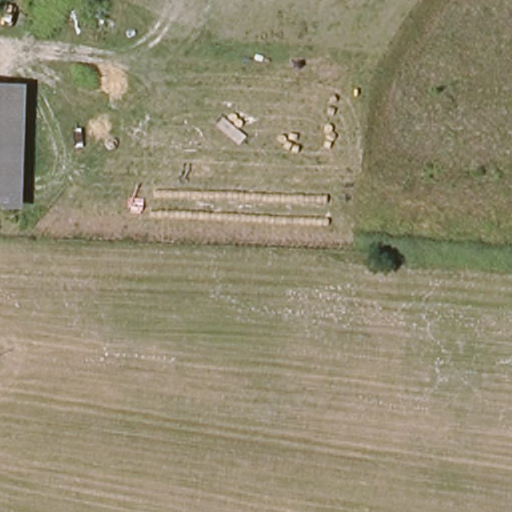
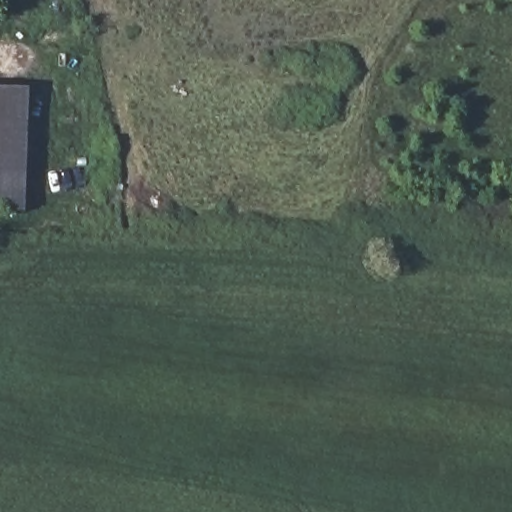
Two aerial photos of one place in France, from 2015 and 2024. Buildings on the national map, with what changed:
unchanged [(0,207),(0,85),(18,85),(17,208),(0,207)]

